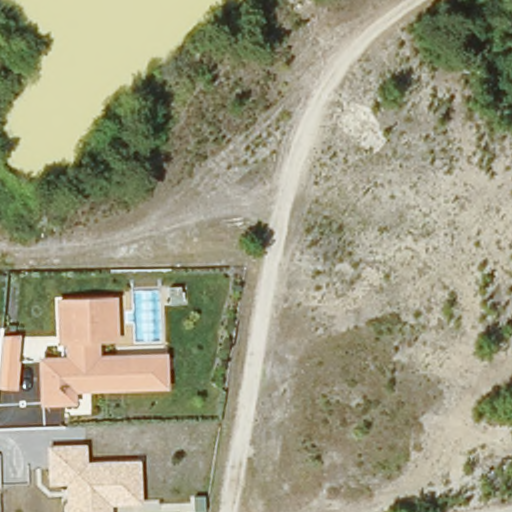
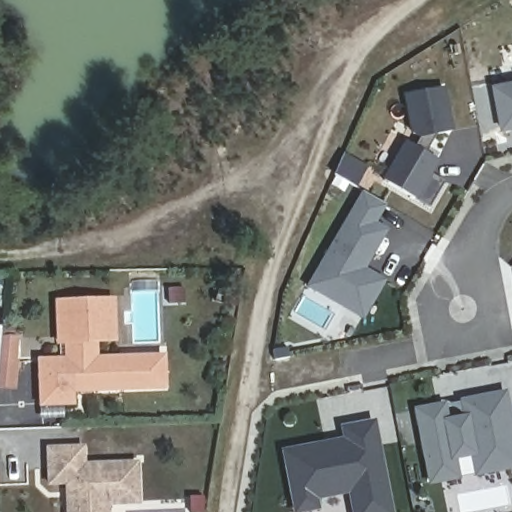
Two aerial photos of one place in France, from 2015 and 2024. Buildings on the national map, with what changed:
new [(512,83),(512,128),(507,129),(497,86),(512,83)]
new [(410,141),(419,146),(424,138),(416,134),(408,96),(445,87),(454,128),(436,131),(426,150),(438,156),(430,170),(445,178),(430,204),(389,181),(410,141)]
new [(345,154),(371,169),(361,186),(337,172),(345,154)]
new [(367,193),(389,205),(379,223),(391,230),(372,262),(368,260),(363,268),(389,283),(379,301),(358,288),(348,306),(314,287),(367,193)]
unchanged [(114,297),(114,338),(95,337),(95,356),(162,355),(163,385),(95,386),(94,374),(71,375),(71,400),(40,400),(40,358),(68,358),(68,338),(58,337),(59,298),(94,297),(114,297)]
new [(0,385),(0,332),(5,333),(5,336),(23,337),(17,387),(0,385)]
new [(450,421),(469,417),(466,401),(491,395),(508,392),(512,411),(512,466),(481,473),(477,453),(458,457),(462,477),(435,482),(420,410),(447,405),(450,421)]
new [(343,438),(341,426),(376,419),(394,512),(352,512),(348,494),(315,500),(317,510),(306,512),(292,512),(281,450),(343,438)]
unchanged [(138,500),(107,499),(107,512),(67,512),(68,477),(49,476),(49,442),(84,442),(84,460),(138,461),(138,500)]

